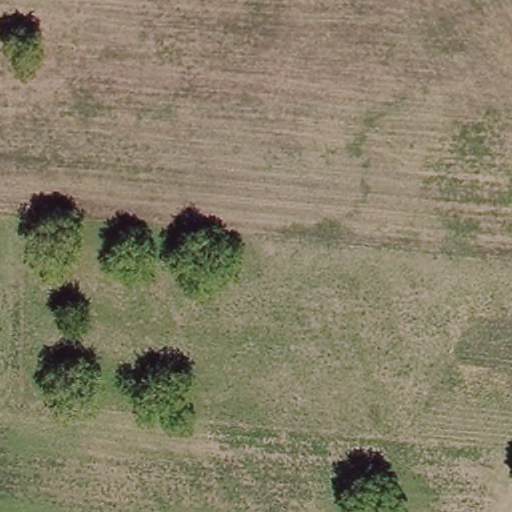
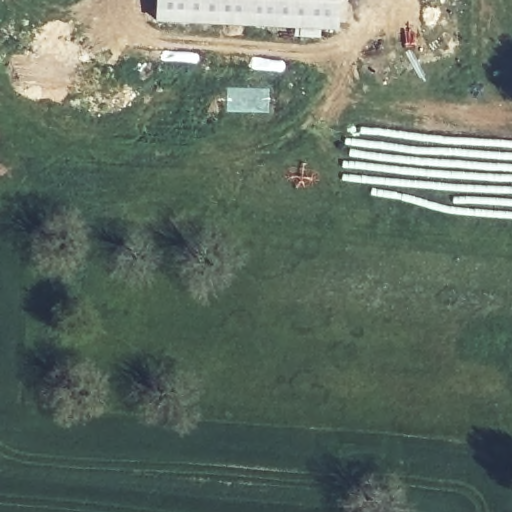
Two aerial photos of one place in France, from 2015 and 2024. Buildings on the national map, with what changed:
new [(338,30),(320,30),(320,37),(295,37),(295,29),(155,22),(156,0),(339,0),(338,30)]

